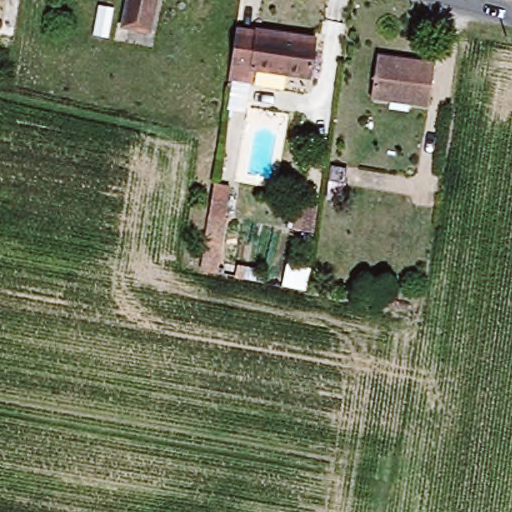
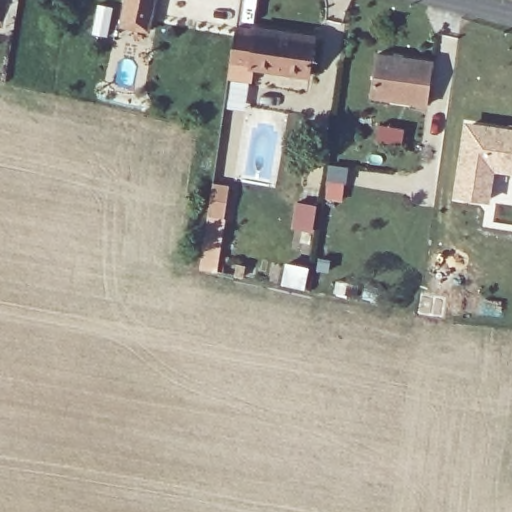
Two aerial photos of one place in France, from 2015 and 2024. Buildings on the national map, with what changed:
unchanged [(145,30),(116,24),(123,0),(153,0),(145,30)]
unchanged [(315,37),(308,77),(253,70),(254,68),(231,64),(237,26),(315,37)]
unchanged [(422,110),(368,100),(374,60),(428,69),(422,110)]
new [(512,133),(512,170),(486,166),(483,200),(455,196),(465,125),(512,133)]
unchanged [(227,185),(217,275),(198,272),(210,183),(227,185)]

